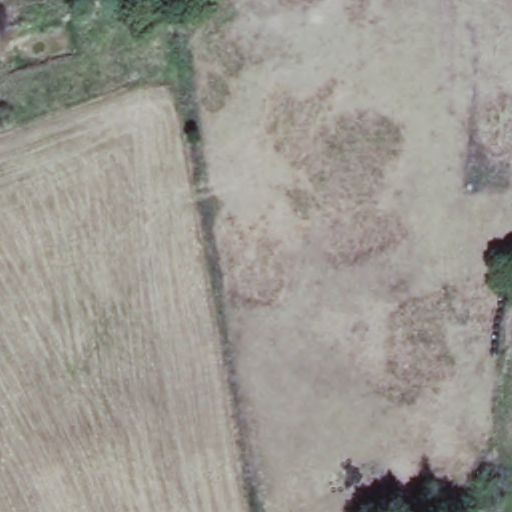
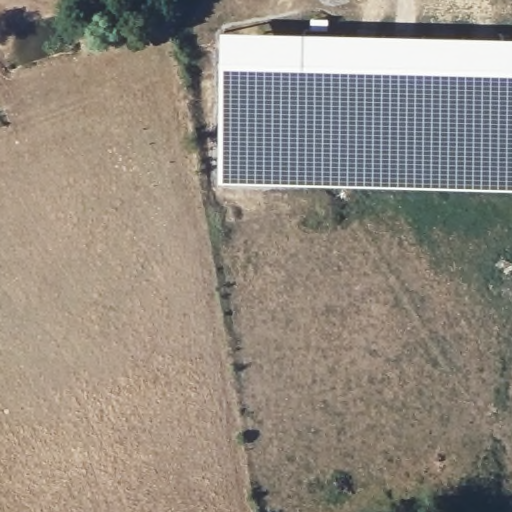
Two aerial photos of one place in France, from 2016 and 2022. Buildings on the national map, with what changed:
new [(109,4),(68,13),(65,0),(109,0),(109,4)]
new [(512,36),(512,190),(220,184),(222,30),(512,36)]

